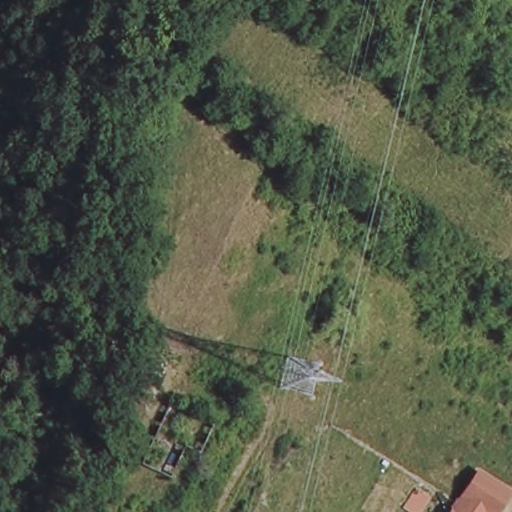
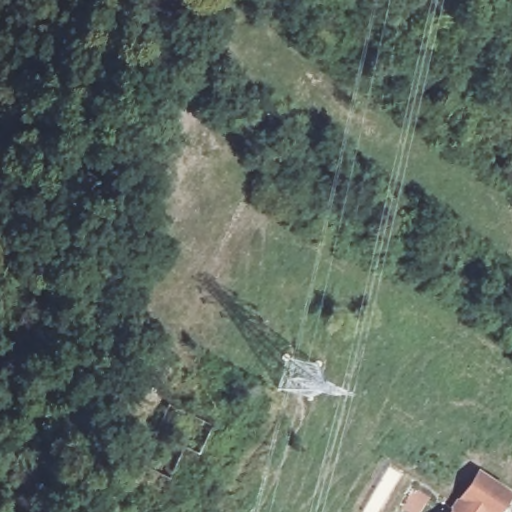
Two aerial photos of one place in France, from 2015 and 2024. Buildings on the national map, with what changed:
unchanged [(481,469),(512,489),(497,512),(462,512),(455,508),(467,492),(481,469)]

